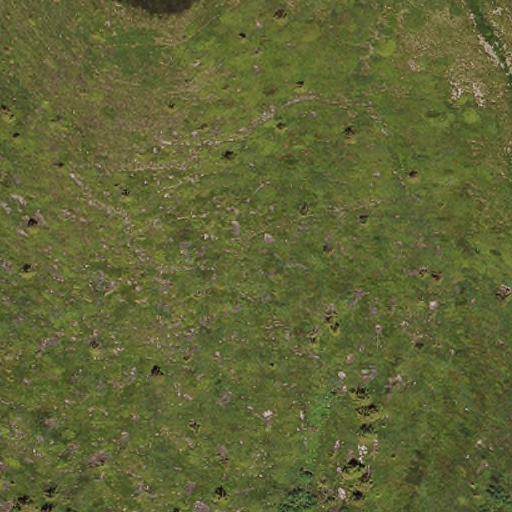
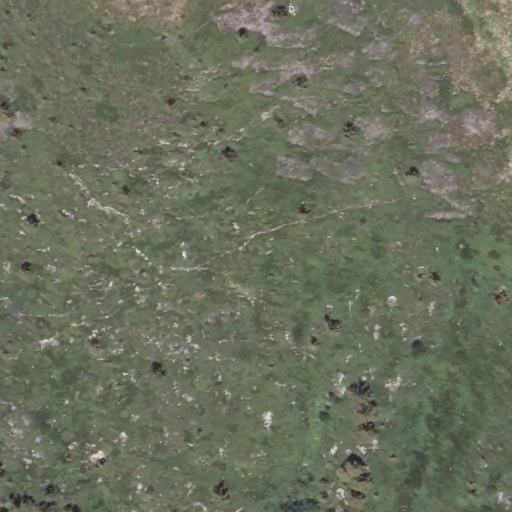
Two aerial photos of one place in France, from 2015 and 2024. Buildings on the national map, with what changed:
[]

